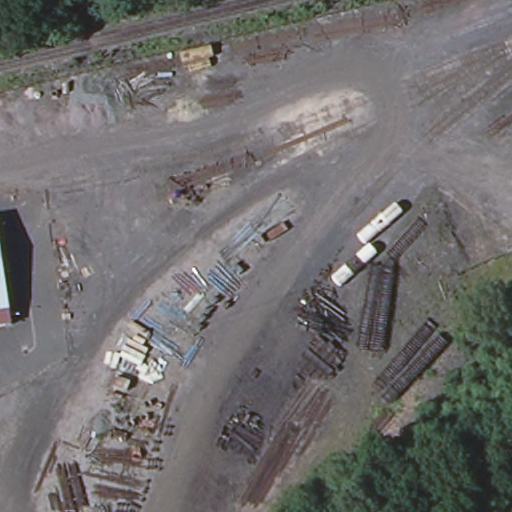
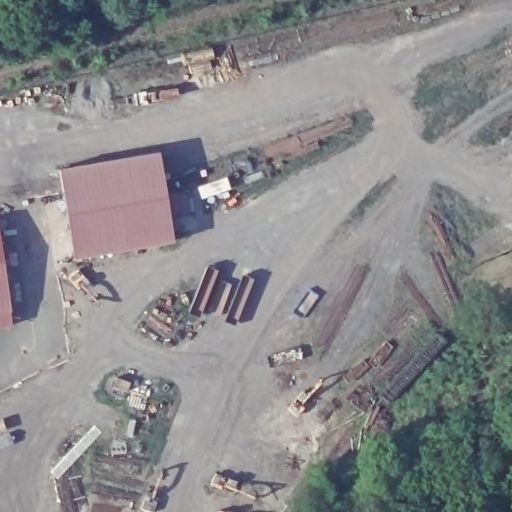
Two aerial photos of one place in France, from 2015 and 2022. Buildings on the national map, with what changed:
new [(167,194),(187,191),(190,212),(170,215),(174,241),(75,258),(60,168),(160,151),(167,194)]
unchanged [(1,214),(17,327),(0,329),(0,214),(1,214)]
unchanged [(503,281),(511,298),(487,310),(478,292),(503,281)]

